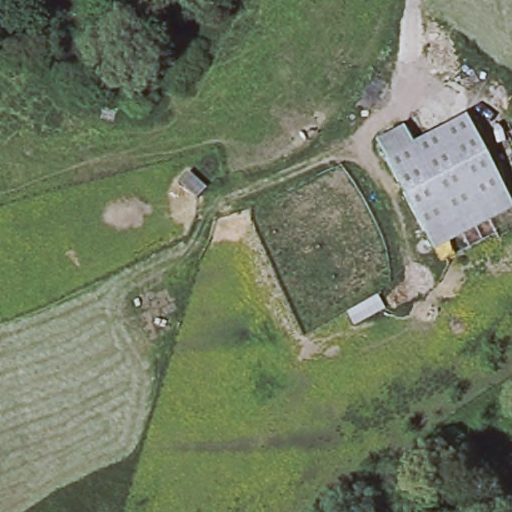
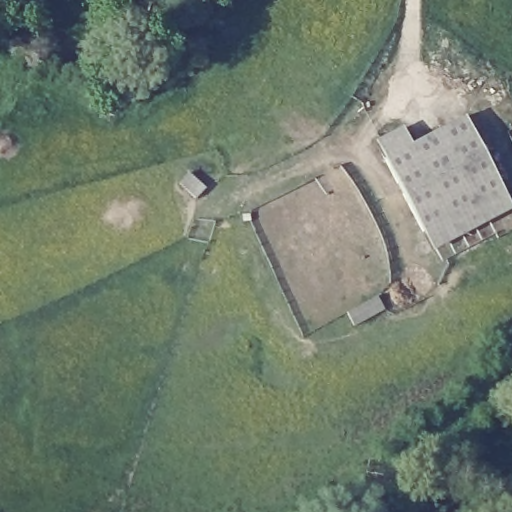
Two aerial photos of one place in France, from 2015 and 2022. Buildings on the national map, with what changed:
unchanged [(415,140),(467,113),(512,196),(512,206),(435,246),(376,139),(405,121),(415,140)]

